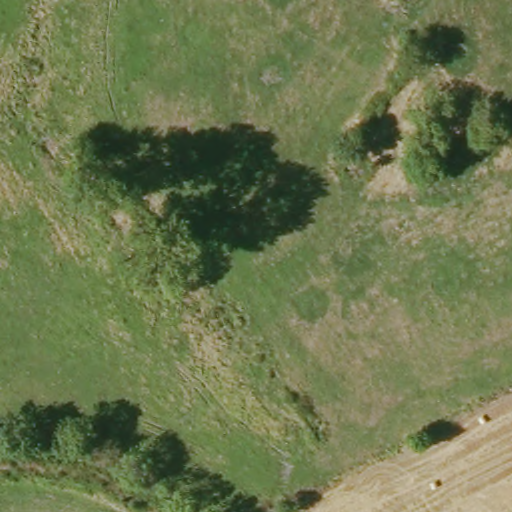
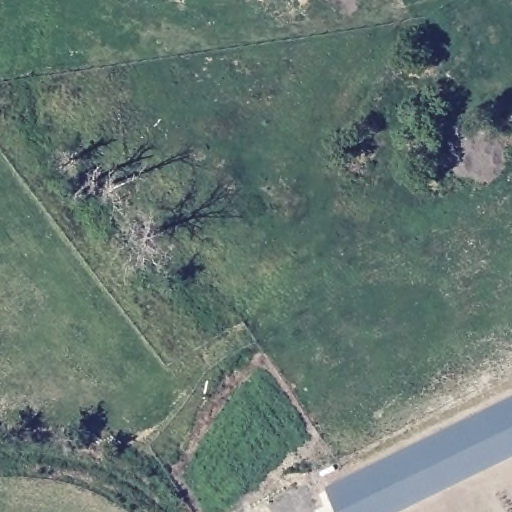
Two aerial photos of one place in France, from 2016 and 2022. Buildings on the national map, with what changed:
new [(325,488),(512,395),(512,457),(400,512),(337,512),(325,488)]

